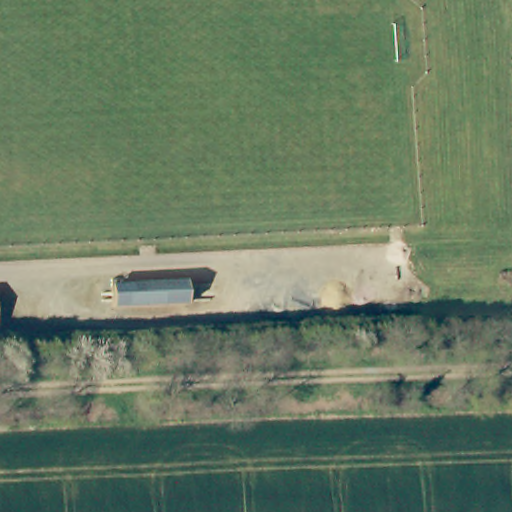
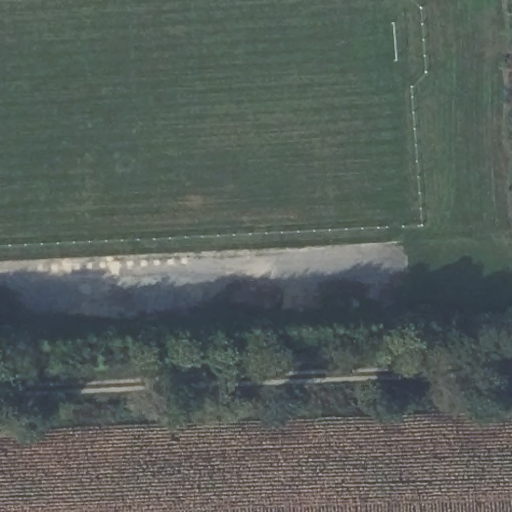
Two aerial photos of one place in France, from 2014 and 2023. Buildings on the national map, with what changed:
unchanged [(131,281),(133,289),(179,286),(178,280),(192,279),(194,305),(119,310),(116,284),(131,281)]

